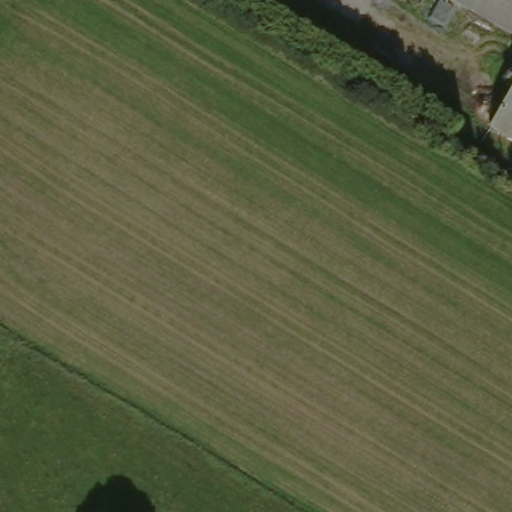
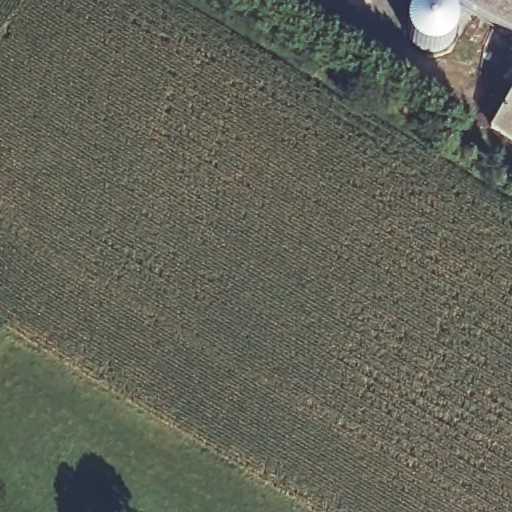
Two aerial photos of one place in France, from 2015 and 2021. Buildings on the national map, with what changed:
unchanged [(439,0),(512,0),(512,42),(439,0)]
new [(454,41),(440,52),(433,54),(423,52),(416,47),(411,42),(408,35),(407,27),(409,18),(413,12),(418,7),(426,4),(431,2),(437,1),(444,2),(448,6),(452,10),(456,17),(458,24),(458,29),(457,32),(454,41)]
unchanged [(512,97),(512,141),(493,129),(512,97)]

